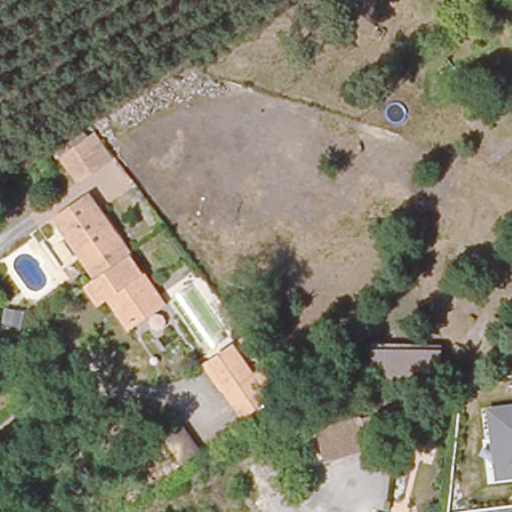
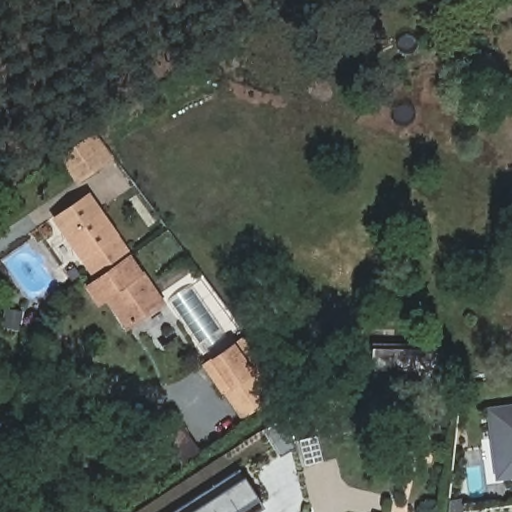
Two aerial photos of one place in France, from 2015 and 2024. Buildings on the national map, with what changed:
unchanged [(99,142),(113,159),(107,163),(76,186),(58,160),(57,159),(69,150),(87,137),(94,146),(99,142)]
unchanged [(111,289),(101,295),(91,280),(101,274),(69,227),(59,211),(91,189),(103,206),(165,297),(132,320),(111,289)]
unchanged [(24,311),(19,331),(0,328),(3,306),(24,311)]
unchanged [(238,339),(274,393),(254,407),(235,420),(230,411),(201,365),(238,339)]
unchanged [(386,347),(443,346),(443,380),(386,381),(386,347)]
unchanged [(496,480),(486,406),(512,403),(512,479),(496,480)]
unchanged [(313,437),(356,426),(363,454),(320,465),(313,437)]
new [(243,476),(257,497),(263,506),(254,512),(174,512),(239,469),(243,476)]

